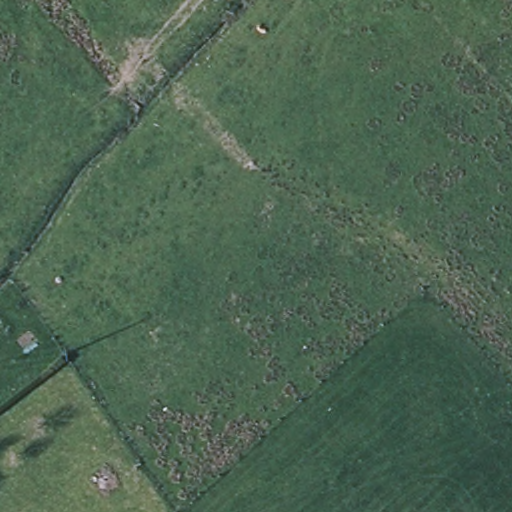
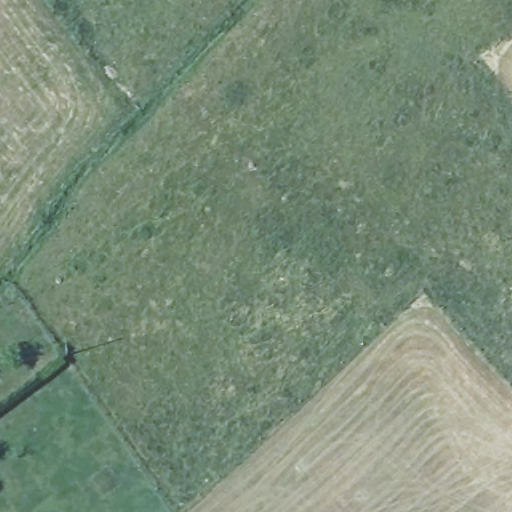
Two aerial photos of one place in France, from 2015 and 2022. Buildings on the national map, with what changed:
[]

